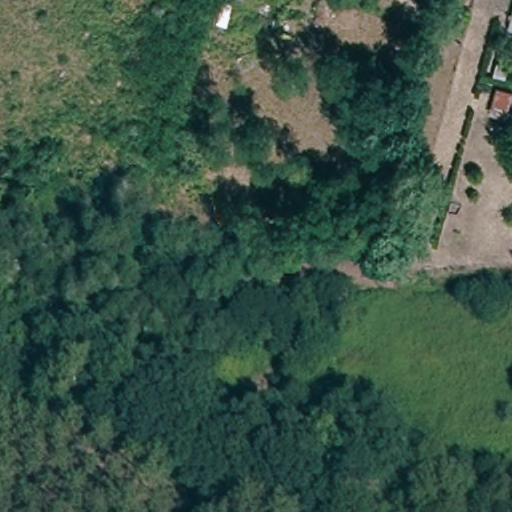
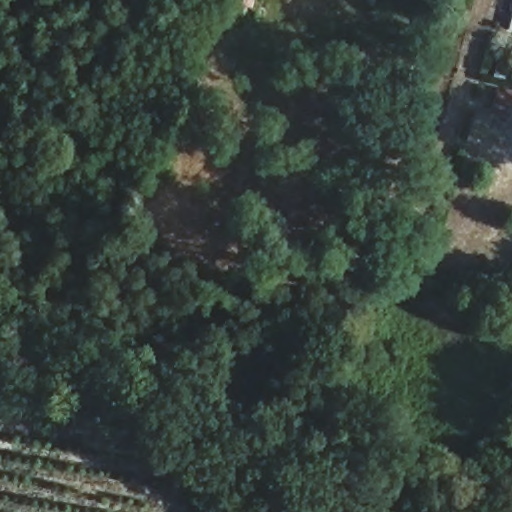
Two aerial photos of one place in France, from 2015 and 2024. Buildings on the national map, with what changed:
unchanged [(512,6),(512,46),(500,44),(512,6)]

